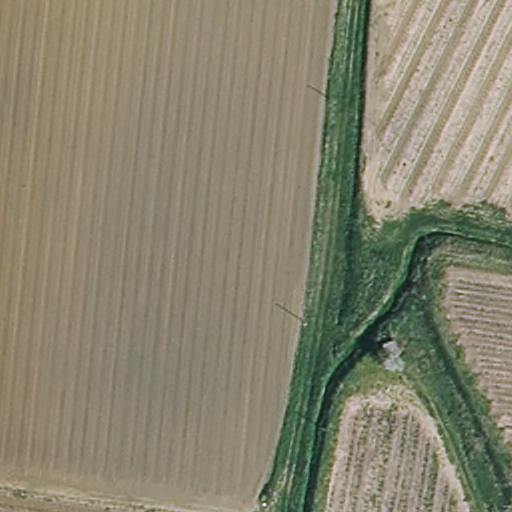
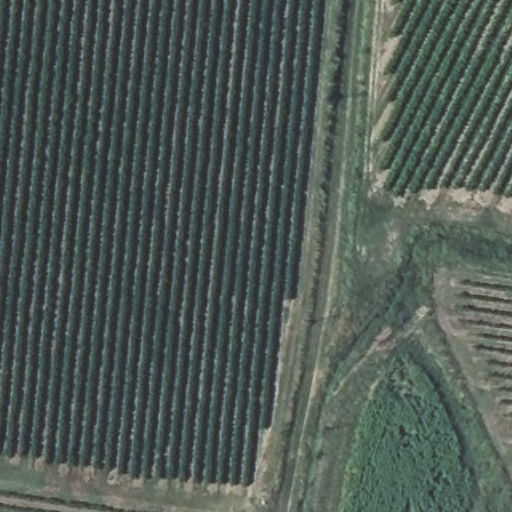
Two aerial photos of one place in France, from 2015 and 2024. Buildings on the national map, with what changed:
unchanged [(418,343),(406,348),(401,339),(412,333),(418,343)]

